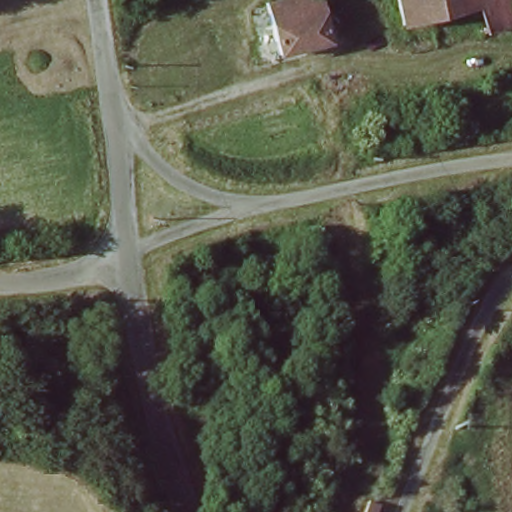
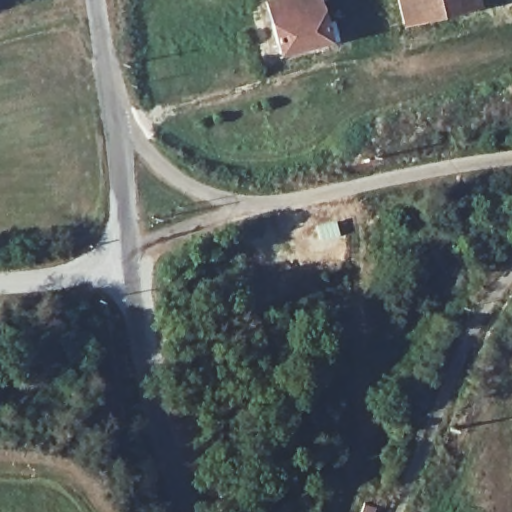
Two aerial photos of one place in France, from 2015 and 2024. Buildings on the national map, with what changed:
unchanged [(274,58),(259,4),(275,0),(318,0),(330,43),(274,58)]
unchanged [(392,0),(512,0),(512,33),(482,42),(475,12),(399,28),(392,0)]
unchanged [(381,512),(357,512),(360,501),(382,508),(381,512)]

